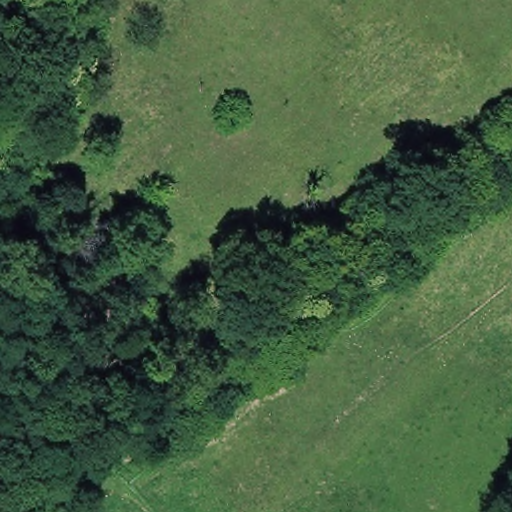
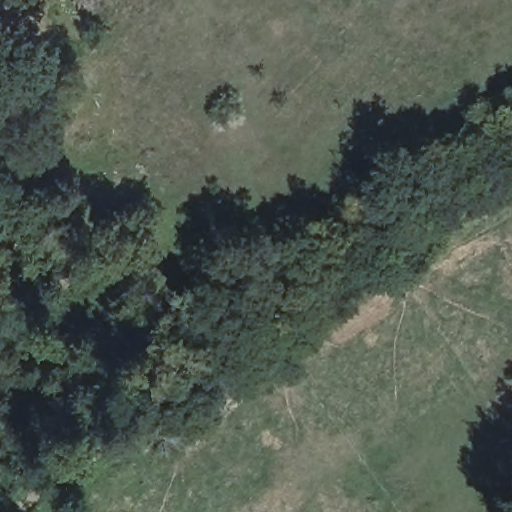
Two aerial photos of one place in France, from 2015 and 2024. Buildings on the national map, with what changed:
unchanged [(15,172),(27,182),(0,217),(0,195),(15,172)]

